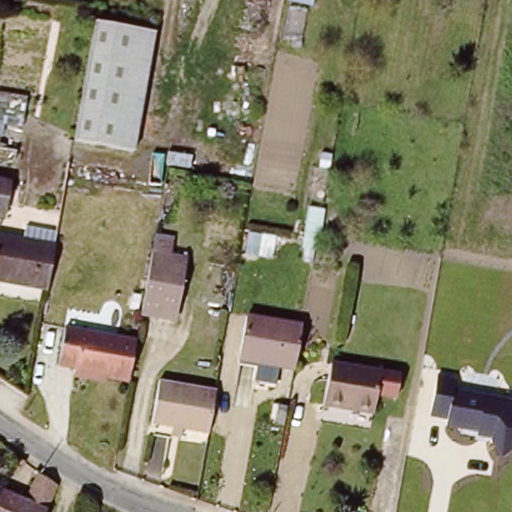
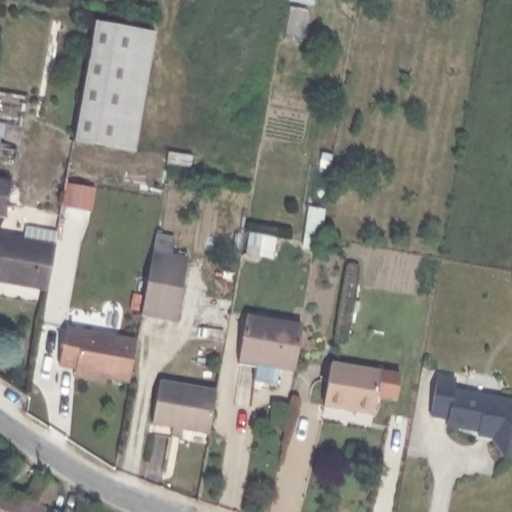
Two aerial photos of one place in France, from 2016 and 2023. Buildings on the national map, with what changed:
unchanged [(79,141),(98,26),(155,36),(137,151),(79,141)]
unchanged [(2,219),(0,219),(0,186),(7,188),(2,219)]
unchanged [(0,233),(58,242),(51,287),(0,277),(0,233)]
unchanged [(143,313),(157,247),(192,253),(177,321),(143,313)]
unchanged [(240,358),(248,315),(305,324),(297,369),(240,358)]
unchanged [(73,375),(74,370),(75,365),(56,362),(62,322),(132,336),(125,378),(104,376),(103,380),(73,375)]
unchanged [(327,404),(335,364),(383,373),(376,412),(327,404)]
unchanged [(437,376),(455,379),(454,391),(512,400),(512,451),(505,456),(492,439),(477,437),(477,432),(445,427),(447,419),(430,417),(437,376)]
unchanged [(155,420),(160,379),(217,388),(210,429),(155,420)]
unchanged [(40,474),(60,488),(50,512),(0,512),(0,490),(28,503),(40,474)]

